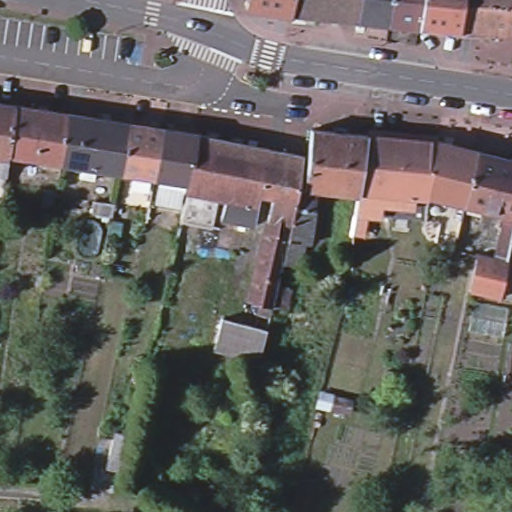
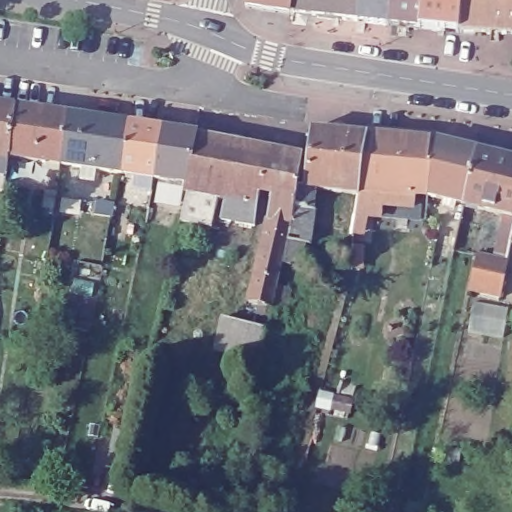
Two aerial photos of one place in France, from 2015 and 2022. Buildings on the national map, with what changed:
unchanged [(317,16),(290,13),(275,11),(245,7),(246,0),(320,0),(317,16)]
unchanged [(418,27),(387,24),(377,23),(317,16),(320,0),(422,0),(418,27)]
unchanged [(440,30),(418,27),(422,0),(442,0),(440,30)]
unchanged [(442,0),(462,0),(460,32),(440,30),(442,0)]
unchanged [(462,0),(478,0),(476,32),(460,32),(462,0)]
unchanged [(512,32),(476,32),(478,0),(479,0),(485,0),(512,0),(512,32)]
unchanged [(10,106),(3,156),(0,182),(0,105),(10,106)]
unchanged [(10,106),(63,114),(55,164),(3,156),(10,106)]
unchanged [(63,114),(123,123),(115,173),(55,164),(63,114)]
unchanged [(123,123),(157,129),(150,178),(115,173),(123,123)]
unchanged [(157,129),(192,134),(181,183),(150,178),(157,129)]
unchanged [(373,202),(368,202),(365,202),(362,216),(366,216),(364,235),(346,232),(352,193),(332,191),(310,188),(299,186),(307,129),(361,134),(433,140),(424,195),(385,191),(384,203),(373,202)]
unchanged [(251,204),(212,196),(180,190),(181,183),(192,134),(263,148),(272,150),(297,154),(293,180),(292,186),(286,223),(261,219),(265,191),(255,190),(251,204)]
unchanged [(433,140),(473,150),(460,203),(424,195),(433,140)]
unchanged [(512,160),(512,216),(460,203),(473,150),(512,160)]
unchanged [(266,308),(243,302),(261,219),(286,223),(292,186),(299,186),(310,188),(308,207),(308,208),(304,241),(300,240),(295,265),(278,261),(272,284),(283,286),(278,310),(266,308)]
unchanged [(93,201),(113,204),(111,215),(91,212),(93,201)]
unchanged [(475,252),(506,258),(498,294),(468,288),(475,252)]
unchanged [(216,323),(226,326),(259,334),(252,360),(220,352),(210,349),(216,323)]
unchanged [(332,405),(335,395),(352,400),(350,410),(332,405)]
unchanged [(112,440),(128,443),(121,473),(105,469),(112,440)]

